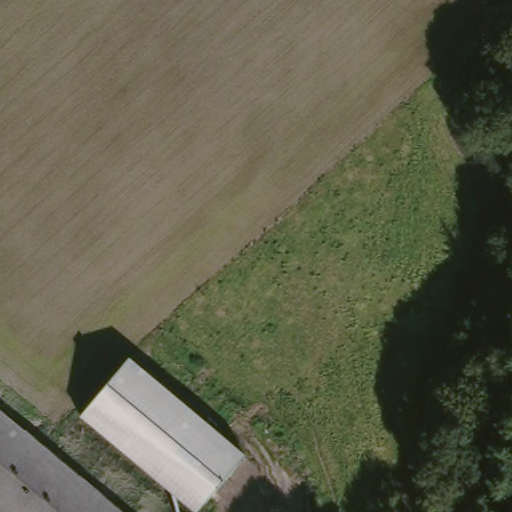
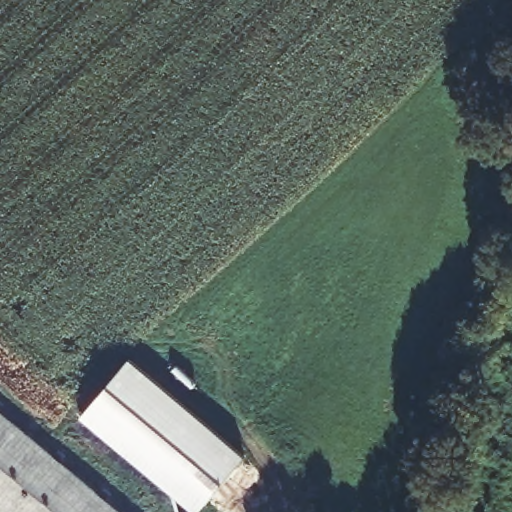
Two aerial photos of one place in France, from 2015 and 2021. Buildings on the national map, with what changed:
unchanged [(245,451),(204,512),(200,512),(78,428),(121,366),(245,451)]
unchanged [(0,415),(115,512),(0,512),(0,415)]

